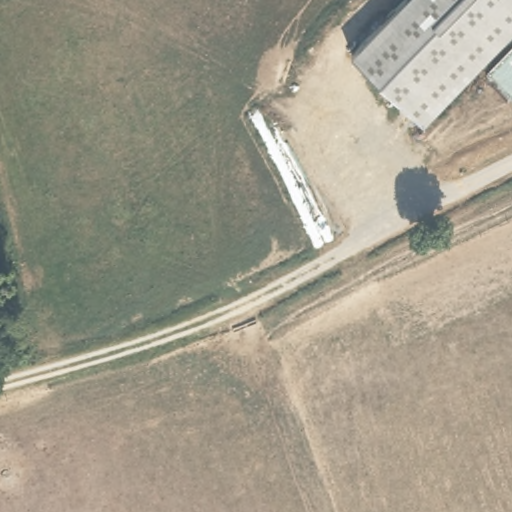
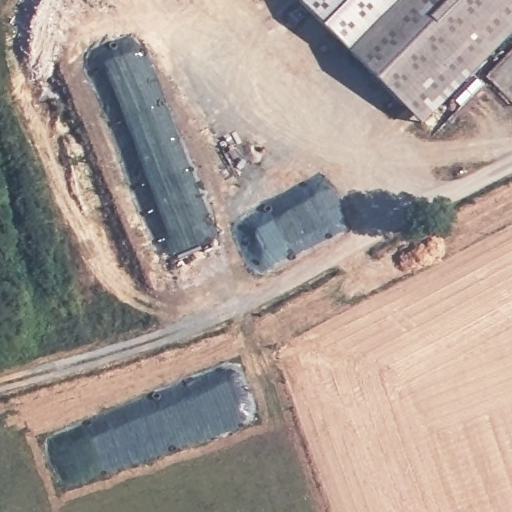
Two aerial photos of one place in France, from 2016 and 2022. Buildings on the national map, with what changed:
new [(349,55),(293,0),(404,0),(349,55)]
unchanged [(419,125),(349,55),(404,0),(512,0),(512,30),(419,125)]

